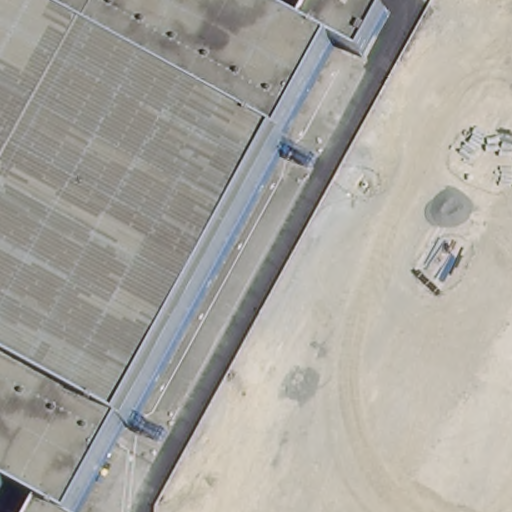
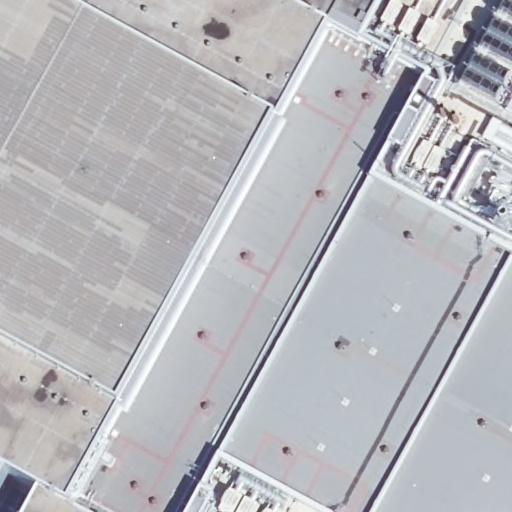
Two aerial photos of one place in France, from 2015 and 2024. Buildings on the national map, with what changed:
unchanged [(300,22),(312,0),(368,0),(385,10),(360,55),(330,39),(279,134),(284,136),(126,423),(122,421),(72,512),(29,512),(37,497),(7,480),(0,492),(0,0),(272,0),(269,6),(300,22)]
new [(122,421),(126,423),(284,136),(279,134),(330,39),(360,55),(385,10),(391,0),(484,0),(512,16),(512,278),(385,512),(72,512),(122,421)]

